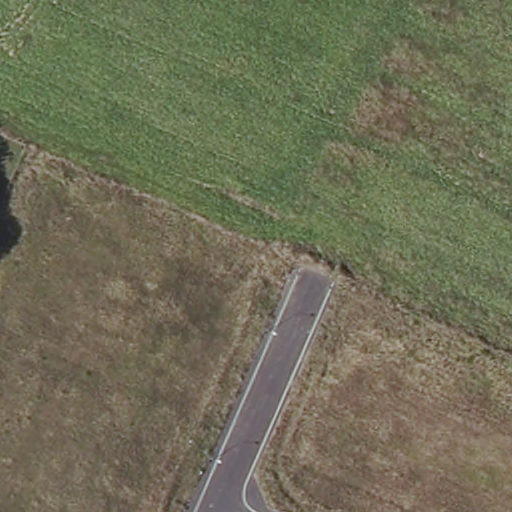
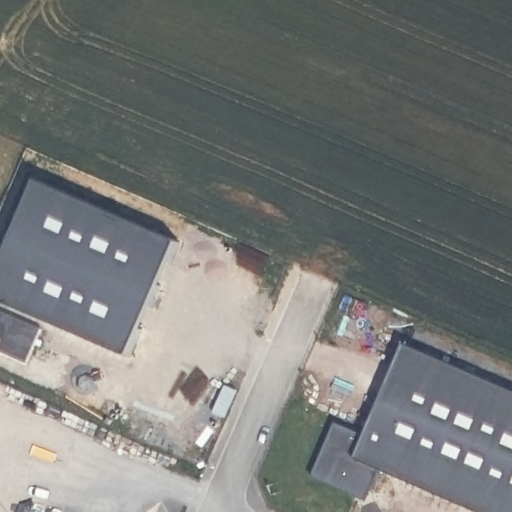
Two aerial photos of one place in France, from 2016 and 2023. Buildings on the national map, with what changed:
new [(42,179),(186,241),(132,357),(0,298),(0,276),(42,179)]
new [(512,512),(490,512),(379,463),(366,495),(313,475),(335,419),(371,433),(411,342),(512,387),(512,512)]

